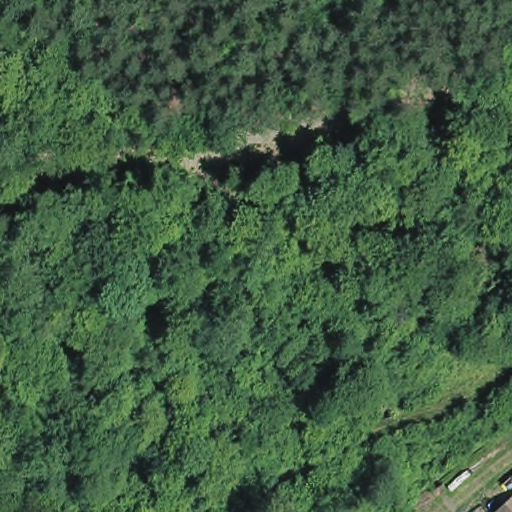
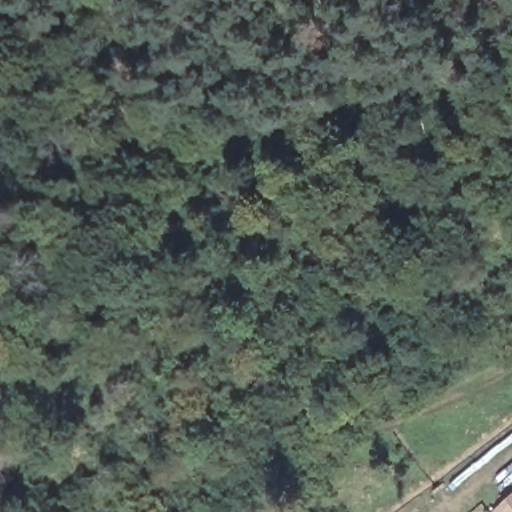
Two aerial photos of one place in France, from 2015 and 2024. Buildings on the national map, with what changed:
unchanged [(512,504),(512,512),(504,512),(512,504)]

